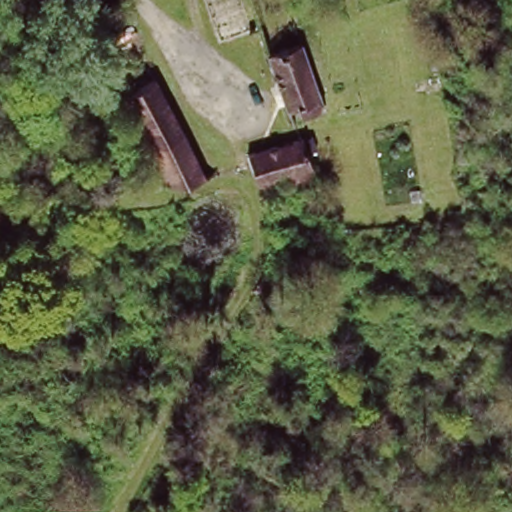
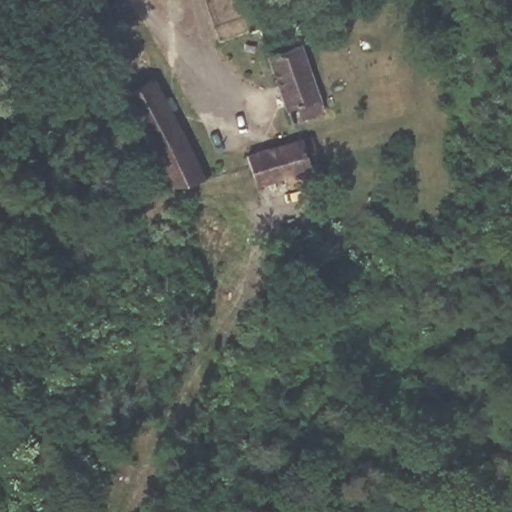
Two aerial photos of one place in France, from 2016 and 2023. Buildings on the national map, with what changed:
unchanged [(269,52),(305,42),(323,101),(288,112),(269,52)]
unchanged [(126,92),(156,77),(203,185),(172,195),(126,92)]
unchanged [(266,172),(261,174),(256,159),(253,150),(306,132),(318,170),(271,186),(266,172)]

